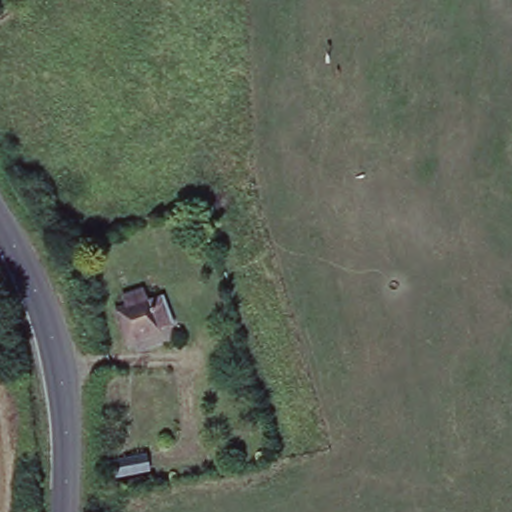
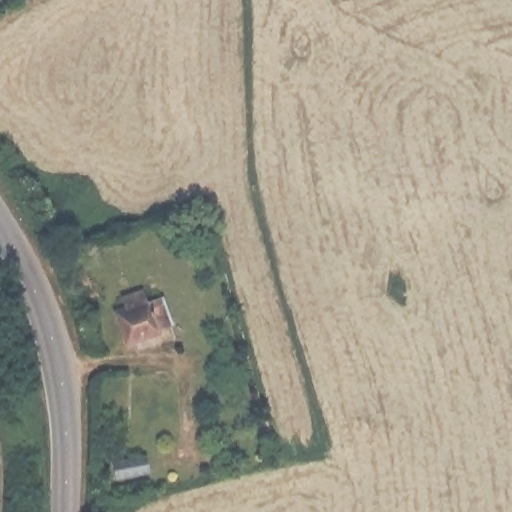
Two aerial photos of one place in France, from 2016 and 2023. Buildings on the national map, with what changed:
unchanged [(146,298),(150,306),(162,301),(170,324),(122,340),(112,311),(146,298)]
unchanged [(110,463),(145,454),(150,472),(114,481),(110,463)]

